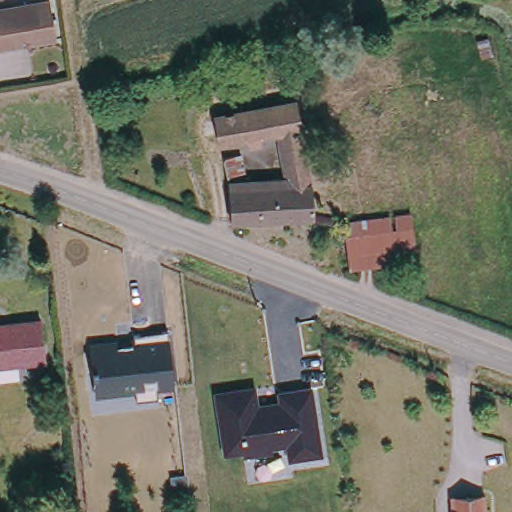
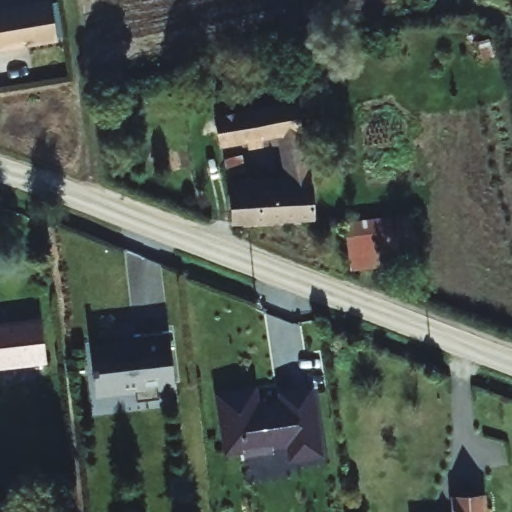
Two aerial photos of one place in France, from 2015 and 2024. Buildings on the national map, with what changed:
unchanged [(57,40),(0,47),(0,6),(52,0),(57,40)]
unchanged [(315,184),(317,217),(236,220),(234,186),(295,186),(283,133),(228,142),(225,116),(280,105),(278,91),(295,87),(315,184)]
unchanged [(417,206),(425,263),(352,272),(345,215),(417,206)]
unchanged [(50,360),(0,365),(0,323),(47,320),(50,360)]
unchanged [(134,337),(167,333),(168,338),(175,388),(157,390),(158,398),(135,400),(135,393),(96,397),(90,344),(120,340),(120,345),(135,342),(134,337)]
unchanged [(323,456),(288,461),(285,446),(272,448),(273,452),(243,455),(243,451),(224,455),(215,393),(255,386),(258,404),(277,400),(276,391),(312,386),(323,456)]
unchanged [(479,500),(479,512),(450,512),(450,500),(479,500)]

